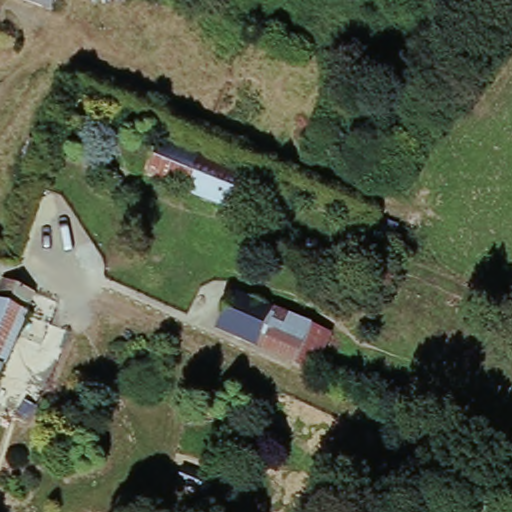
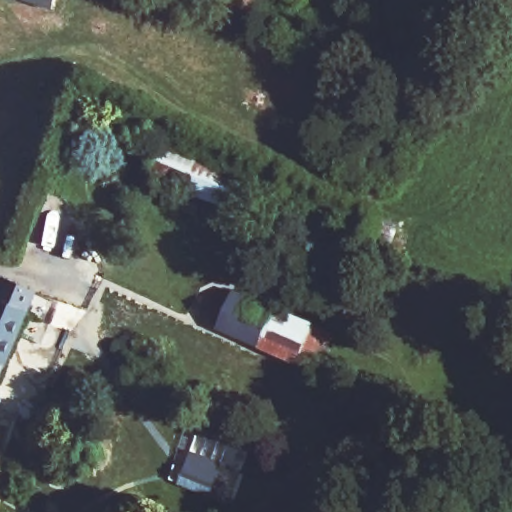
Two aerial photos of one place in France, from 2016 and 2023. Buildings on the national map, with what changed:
unchanged [(26,0),(57,0),(54,11),(26,0)]
unchanged [(260,179),(247,211),(146,169),(159,137),(260,179)]
unchanged [(44,288),(0,386),(0,294),(1,291),(8,274),(44,288)]
unchanged [(265,343),(222,325),(240,284),(283,303),(265,343)]
unchanged [(317,366),(265,343),(283,303),(335,326),(317,366)]
unchanged [(193,458),(220,470),(211,490),(186,481),(193,458)]

